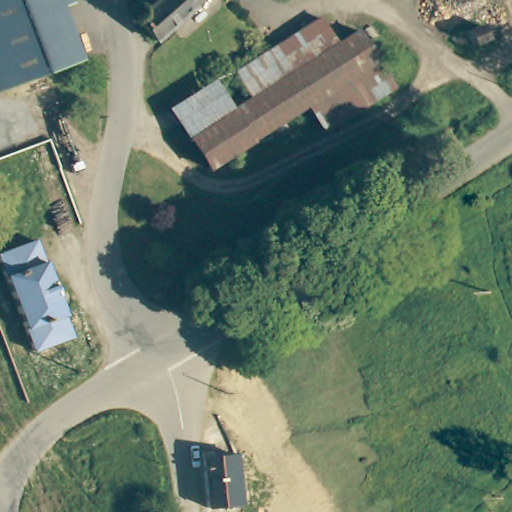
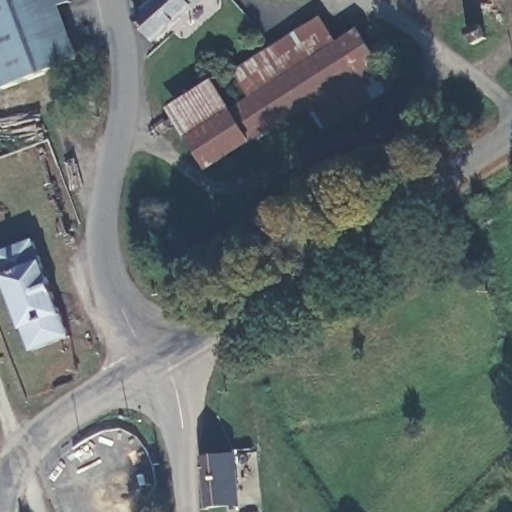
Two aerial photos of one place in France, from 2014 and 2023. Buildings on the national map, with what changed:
unchanged [(70,0),(59,5),(78,59),(0,87),(0,0),(70,0)]
unchanged [(159,39),(140,16),(149,6),(144,0),(201,0),(159,39)]
unchanged [(255,65),(322,21),(338,47),(358,35),(392,89),(324,132),(308,108),(208,171),(191,142),(254,100),(271,90),(255,65)]
unchanged [(473,46),(468,34),(480,29),(485,41),(473,46)]
unchanged [(176,115),(237,76),(254,100),(191,142),(176,115)]
unchanged [(33,240),(69,336),(32,350),(0,266),(0,252),(33,240)]
unchanged [(235,455),(240,505),(209,510),(203,458),(235,455)]

